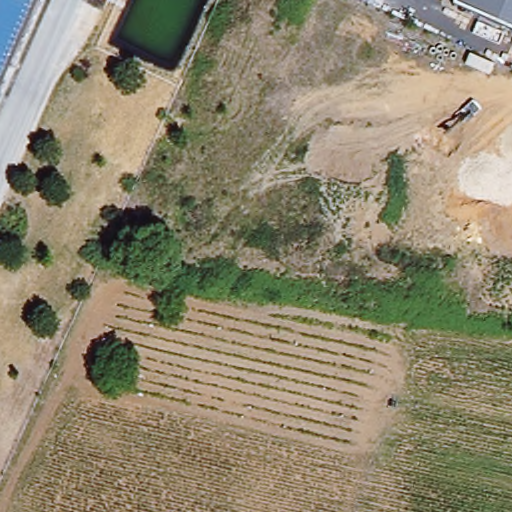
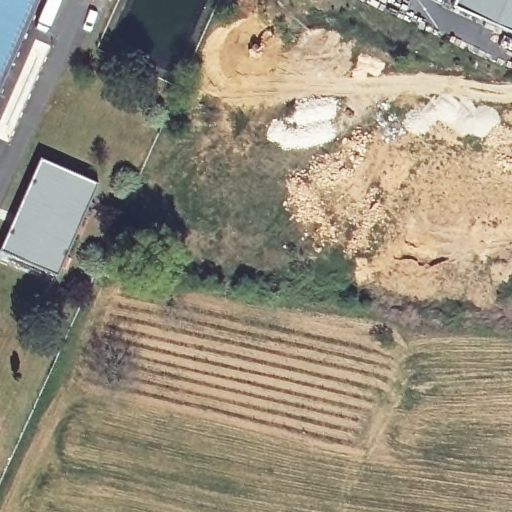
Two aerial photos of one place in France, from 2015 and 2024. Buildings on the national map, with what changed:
unchanged [(3,81),(0,88),(0,0),(65,0),(26,92),(3,81)]
unchanged [(455,0),(512,0),(512,36),(451,9),(455,0)]
new [(39,157),(97,182),(56,276),(0,251),(0,244),(39,157)]

